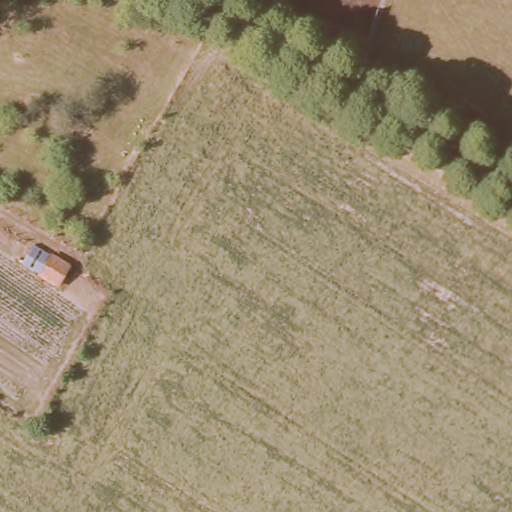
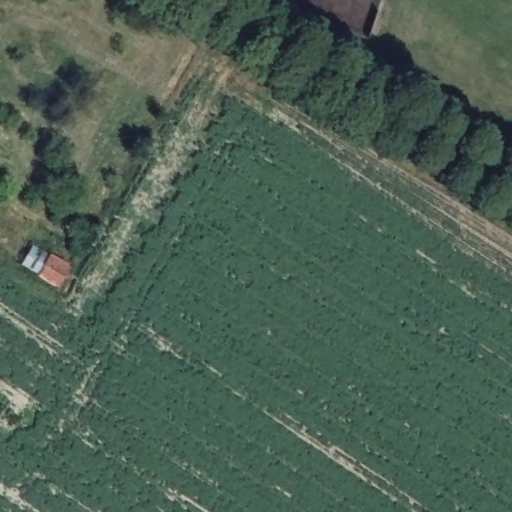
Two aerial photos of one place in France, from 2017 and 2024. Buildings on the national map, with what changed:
unchanged [(36,274),(49,253),(71,265),(58,287),(36,274)]

